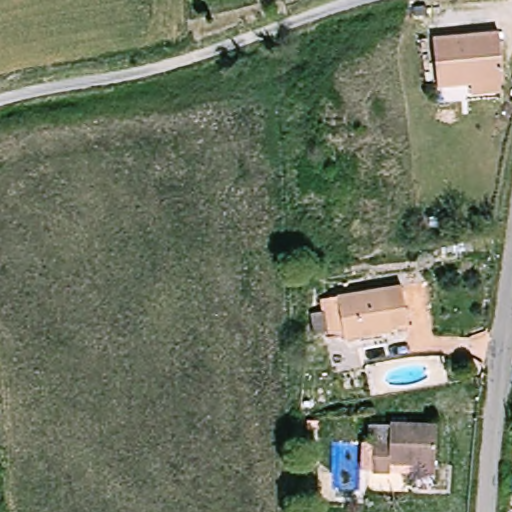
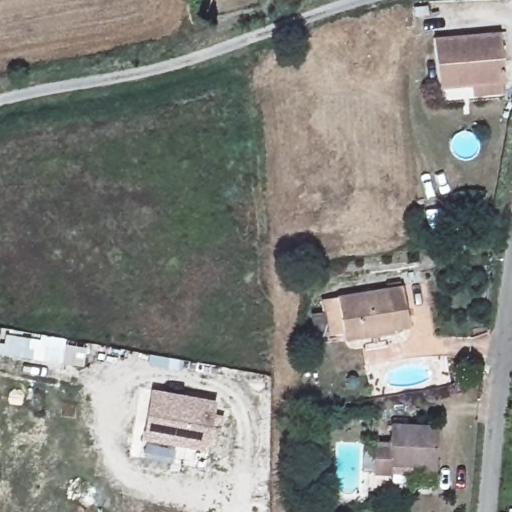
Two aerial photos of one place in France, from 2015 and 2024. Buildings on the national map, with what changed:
unchanged [(503,78),(435,84),(433,37),(500,32),(503,78)]
unchanged [(404,291),(410,331),(352,340),(350,332),(335,335),(330,301),(404,291)]
new [(217,398),(207,450),(142,439),(152,388),(217,398)]
unchanged [(407,472),(407,460),(388,459),(388,470),(372,469),(373,422),(435,425),(433,461),(432,472),(407,472)]

